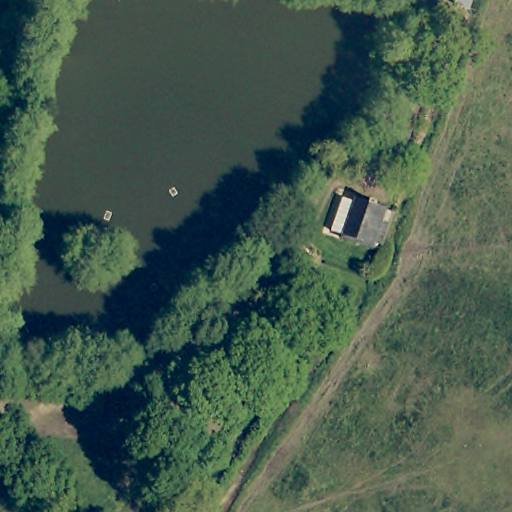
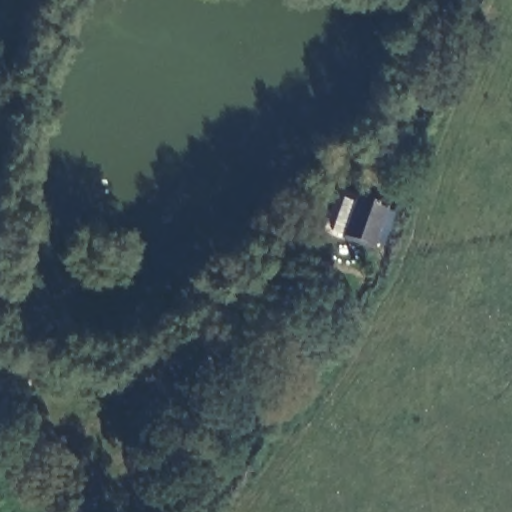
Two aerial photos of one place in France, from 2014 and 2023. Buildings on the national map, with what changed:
unchanged [(383,206),(369,243),(344,233),(358,197),(383,206)]

